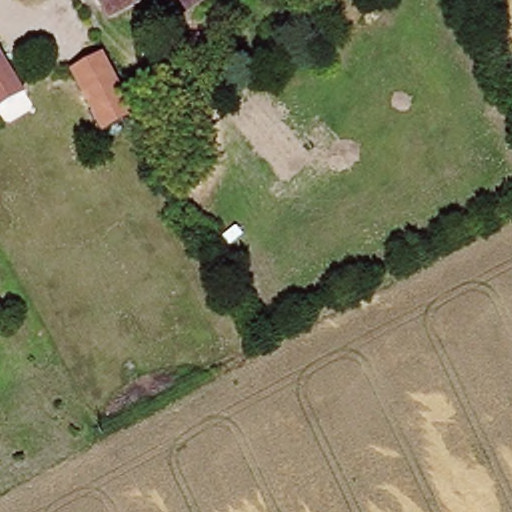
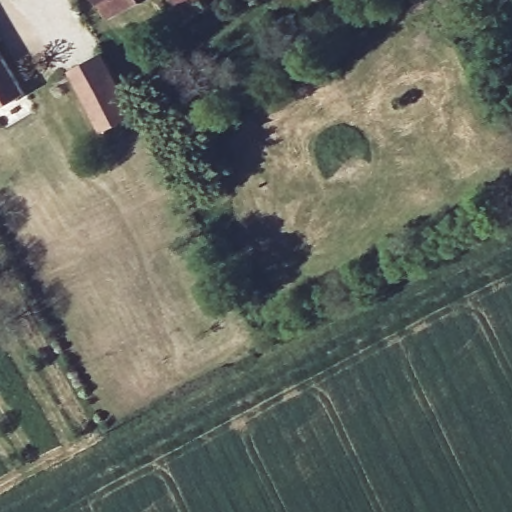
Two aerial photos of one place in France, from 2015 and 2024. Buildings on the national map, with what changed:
unchanged [(100,0),(123,0),(106,10),(100,0)]
unchanged [(168,0),(215,0),(183,22),(168,0)]
unchanged [(0,107),(0,46),(27,89),(0,107)]
unchanged [(102,59),(135,118),(106,133),(73,74),(102,59)]

